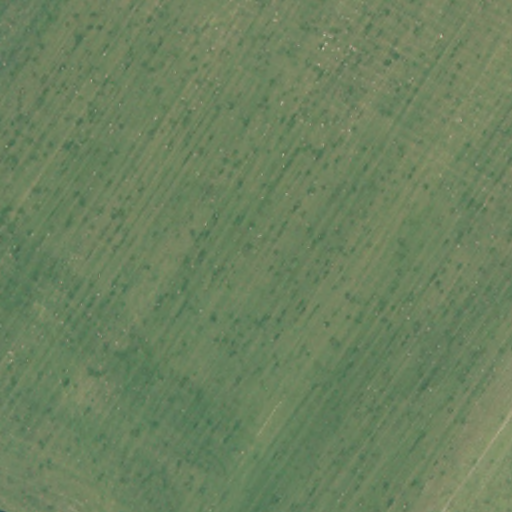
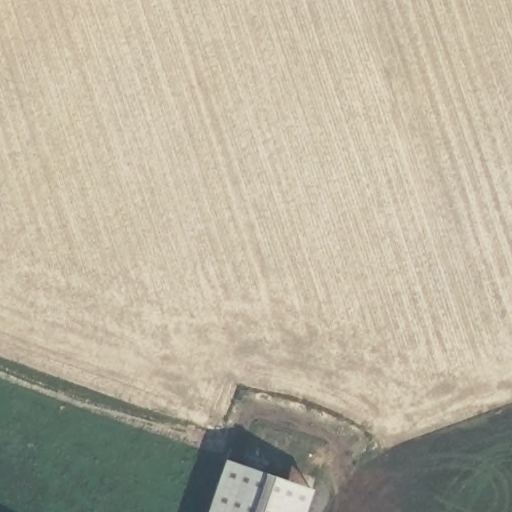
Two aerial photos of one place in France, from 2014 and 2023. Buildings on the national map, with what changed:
new [(305,512),(205,512),(224,458),(313,490),(305,512)]

